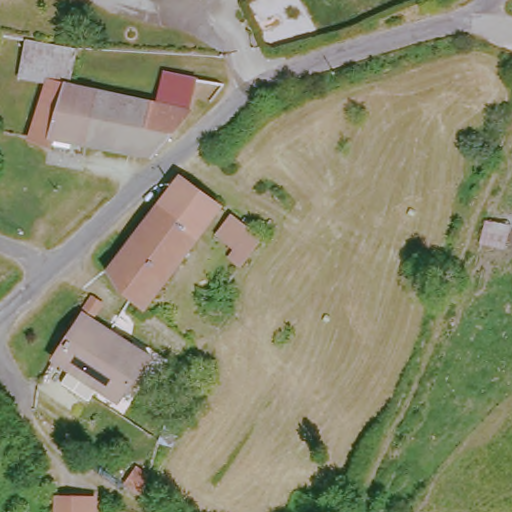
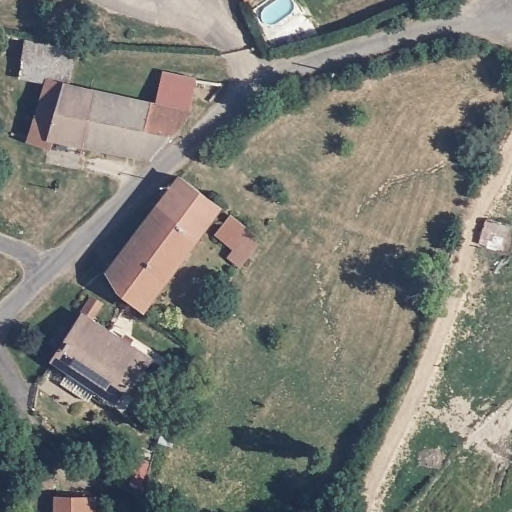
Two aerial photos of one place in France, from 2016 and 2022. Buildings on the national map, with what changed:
unchanged [(54,140),(55,152),(29,142),(48,81),(23,75),(27,55),(0,50),(0,34),(74,51),(66,85),(158,105),(162,80),(195,82),(185,117),(167,144),(156,158),(82,147),(54,140)]
unchanged [(188,175),(223,207),(142,300),(115,278),(108,264),(188,175)]
unchanged [(266,245),(246,271),(239,271),(228,260),(234,250),(220,236),(234,218),(266,245)]
unchanged [(65,346),(59,339),(69,326),(77,331),(87,315),(152,358),(127,400),(103,386),(94,401),(66,384),(75,367),(59,358),(65,346)]
unchanged [(123,464),(141,472),(135,492),(115,482),(123,464)]
unchanged [(99,500),(99,512),(57,512),(57,500),(99,500)]

